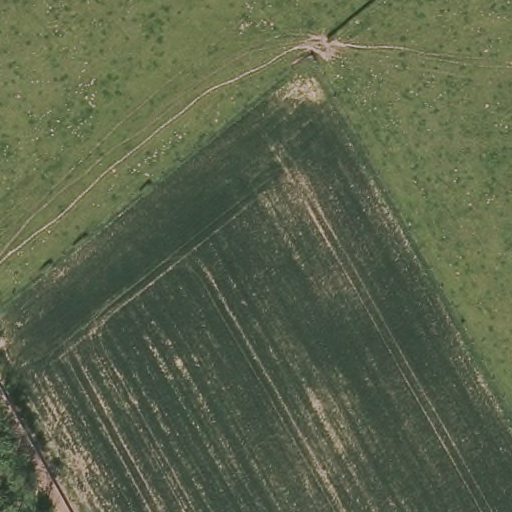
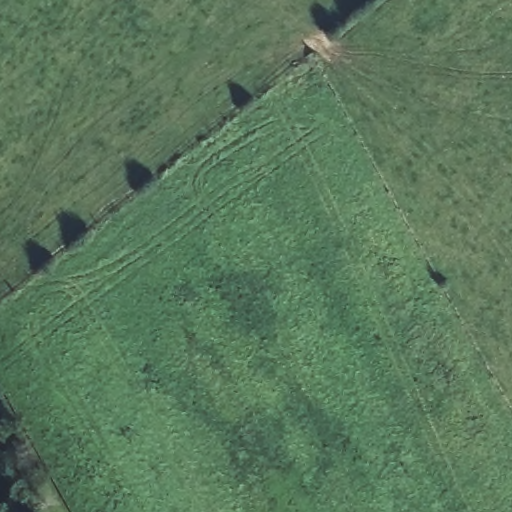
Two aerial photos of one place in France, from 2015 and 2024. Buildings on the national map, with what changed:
[]

